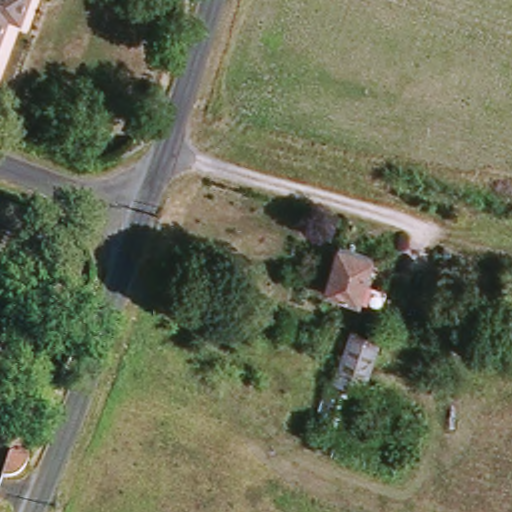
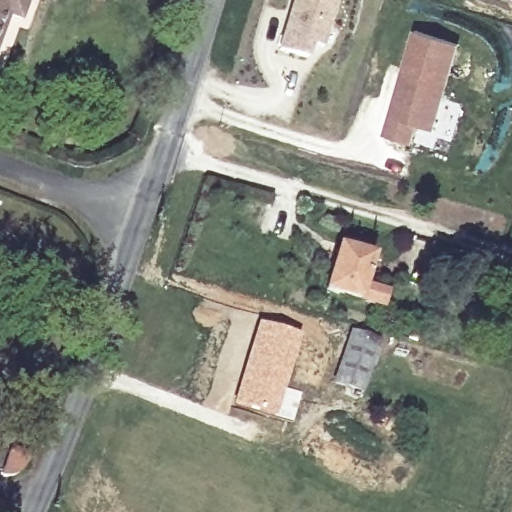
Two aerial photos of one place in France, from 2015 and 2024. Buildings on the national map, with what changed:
unchanged [(0,45),(0,0),(30,0),(21,26),(8,21),(0,45)]
new [(335,0),(316,61),(278,49),(293,0),(335,0)]
new [(436,130),(419,125),(414,145),(383,136),(415,30),(462,44),(436,130)]
unchanged [(339,247),(372,257),(359,302),(326,292),(339,247)]
new [(259,321),(301,335),(285,387),(302,392),(293,421),(232,405),(259,321)]
unchanged [(377,342),(361,391),(335,382),(352,334),(377,342)]
unchanged [(4,503),(6,510),(6,512),(0,512),(0,500),(4,503)]

